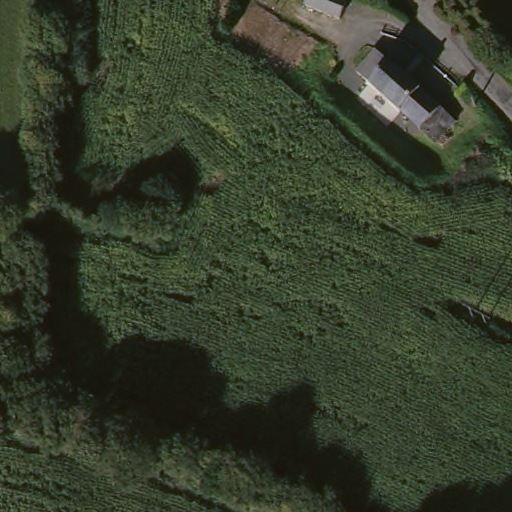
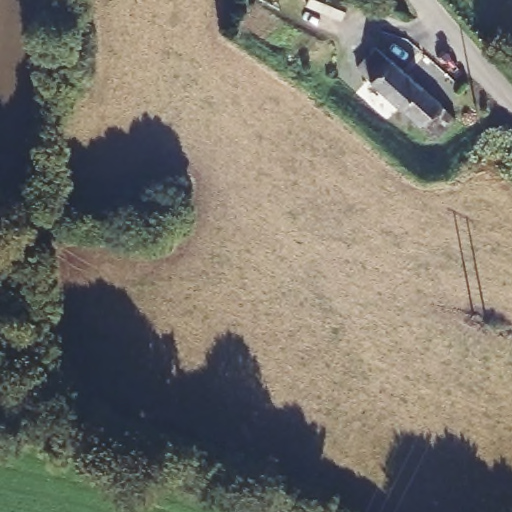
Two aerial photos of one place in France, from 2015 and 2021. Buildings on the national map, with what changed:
unchanged [(304,0),(345,0),(334,23),(301,10),(304,0)]
unchanged [(353,74),(369,56),(384,70),(388,66),(434,111),(414,132),(353,74)]

